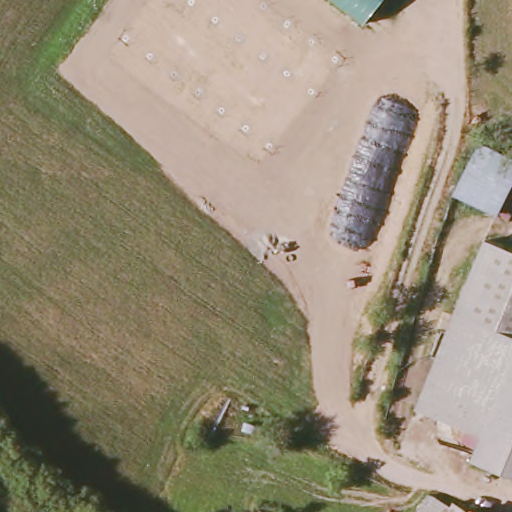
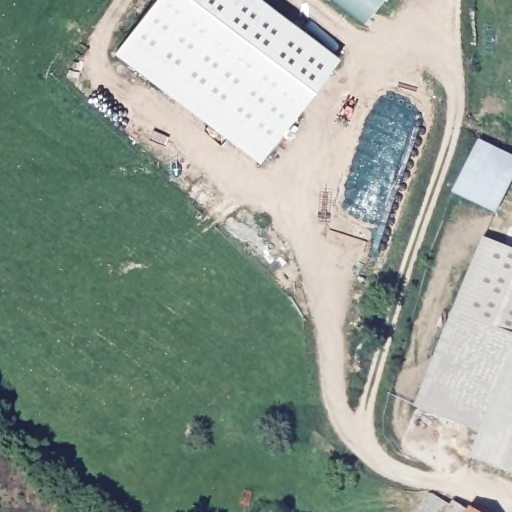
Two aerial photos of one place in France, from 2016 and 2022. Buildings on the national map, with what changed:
new [(152,0),(260,0),(338,58),(259,163),(112,53),(152,0)]
unchanged [(363,25),(330,0),(382,0),(363,25)]
unchanged [(512,152),(512,185),(499,211),(451,191),(477,137),(512,152)]
unchanged [(477,241),(512,254),(512,468),(474,456),(477,446),(462,440),(466,426),(417,409),(477,241)]
unchanged [(454,507),(457,502),(472,511),(471,512),(419,512),(431,493),(454,507)]
unchanged [(471,512),(472,511),(476,505),(486,512),(471,512)]

